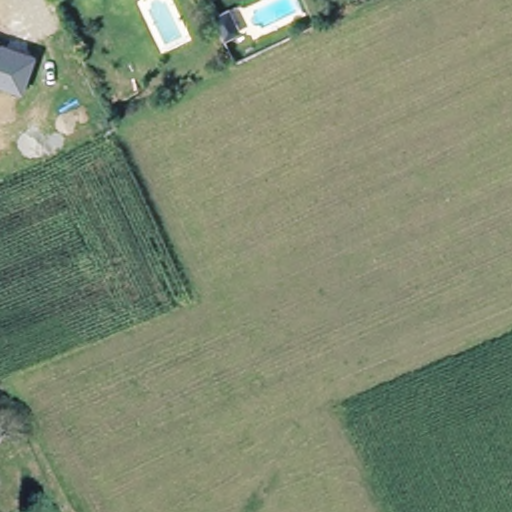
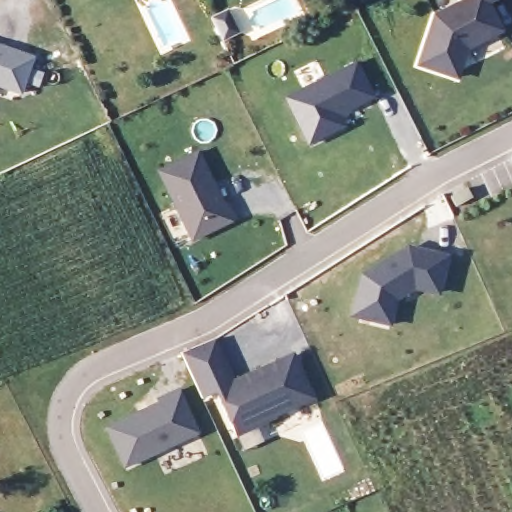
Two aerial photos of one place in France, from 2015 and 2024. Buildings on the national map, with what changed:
new [(465,45),(455,74),(417,61),(434,13),(459,0),(486,0),(500,27),(465,45)]
new [(211,20),(226,10),(237,33),(222,41),(211,20)]
unchanged [(2,41),(2,37),(37,43),(30,80),(0,75),(0,41),(2,41)]
new [(358,60),(378,99),(350,114),(354,125),(307,147),(283,97),(358,60)]
new [(199,151),(224,205),(227,203),(234,219),(194,237),(162,167),(199,151)]
new [(463,187),(468,196),(452,205),(447,196),(463,187)]
new [(443,257),(435,291),(412,286),(392,297),(378,320),(345,300),(366,263),(398,245),(443,257)]
new [(231,376),(224,380),(227,385),(229,385),(293,355),(312,396),(236,432),(217,391),(212,393),(214,397),(206,401),(204,397),(203,397),(182,352),(215,338),(231,376)]
new [(156,402),(154,399),(174,390),(194,432),(121,465),(102,427),(156,402)]

